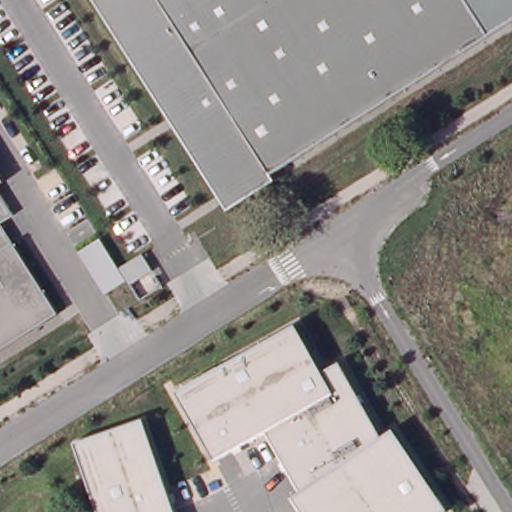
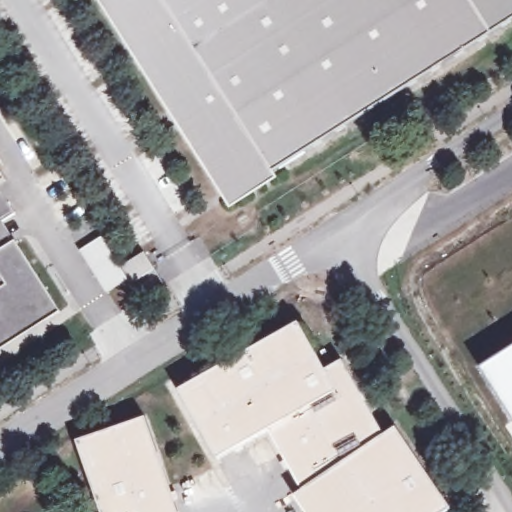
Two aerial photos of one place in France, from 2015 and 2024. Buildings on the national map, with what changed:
unchanged [(274,171),(278,178),(230,209),(99,0),(468,0),(490,34),(274,171)]
unchanged [(468,0),(512,0),(512,20),(490,34),(468,0)]
unchanged [(0,183),(0,167),(7,178),(0,183)]
unchanged [(3,222),(60,313),(0,349),(0,189),(14,214),(3,222)]
unchanged [(79,252),(100,237),(119,269),(143,254),(152,271),(130,285),(127,281),(105,294),(79,252)]
unchanged [(300,325),(324,372),(342,363),(385,436),(398,429),(450,506),(441,512),(306,512),(295,497),(305,491),(272,428),(220,456),(183,390),(300,325)]
new [(479,366),(512,346),(512,422),(479,366)]
unchanged [(145,418),(177,512),(102,512),(80,441),(145,418)]

